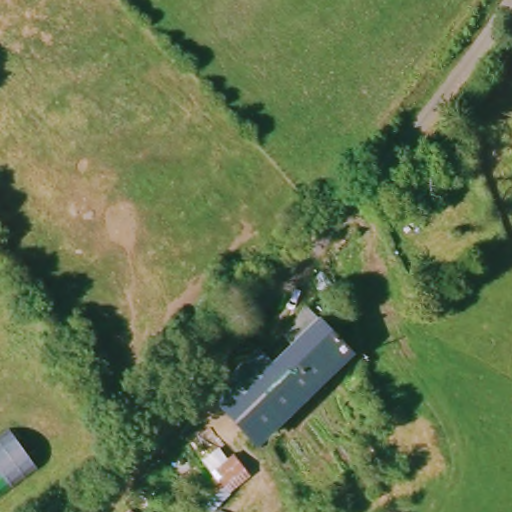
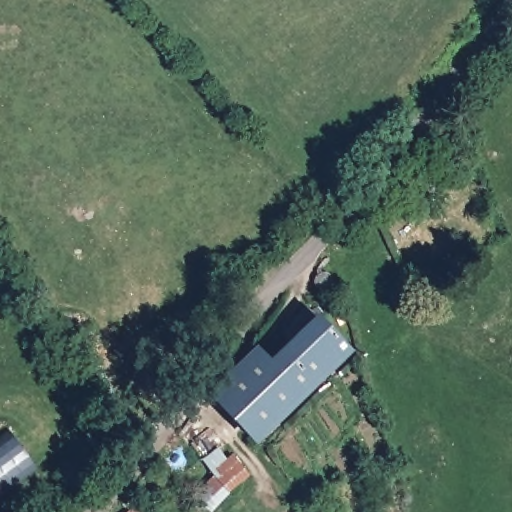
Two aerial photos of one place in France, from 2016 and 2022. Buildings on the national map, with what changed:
unchanged [(311,284),(318,274),(327,275),(333,283),(317,294),(311,284)]
unchanged [(251,356),(266,369),(288,349),(280,340),(301,312),(346,354),(251,445),(208,399),(251,356)]
unchanged [(26,482),(0,501),(0,444),(26,482)]
unchanged [(210,512),(207,512),(189,498),(208,474),(201,462),(221,446),(248,476),(228,491),(210,512)]
unchanged [(129,512),(127,512),(128,511),(129,512)]

